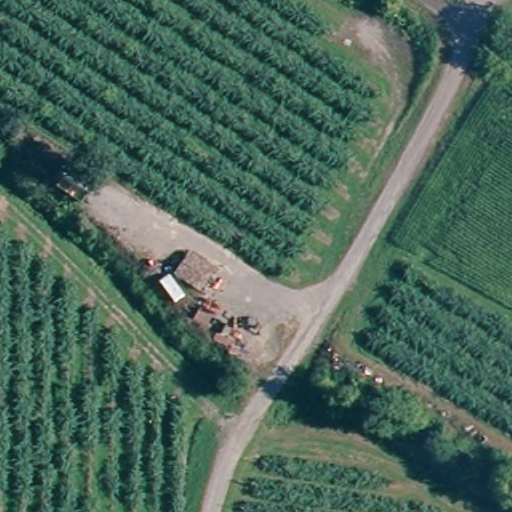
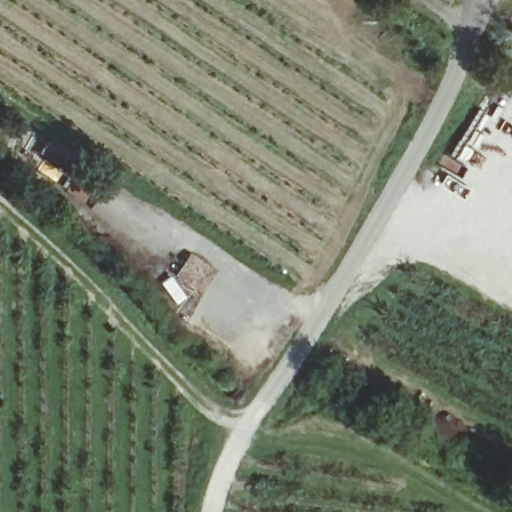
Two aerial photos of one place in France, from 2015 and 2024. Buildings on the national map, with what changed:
unchanged [(225,275),(209,295),(176,279),(188,251),(225,275)]

